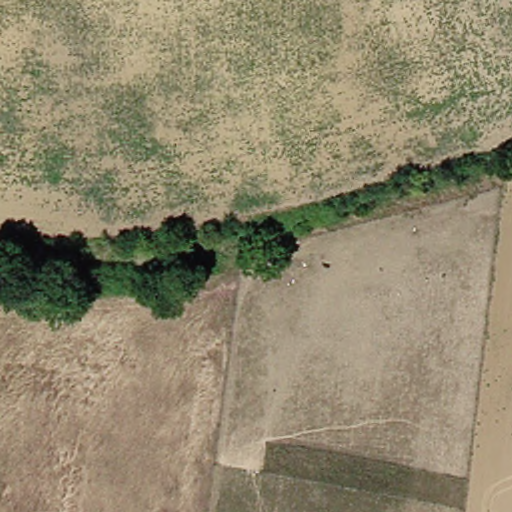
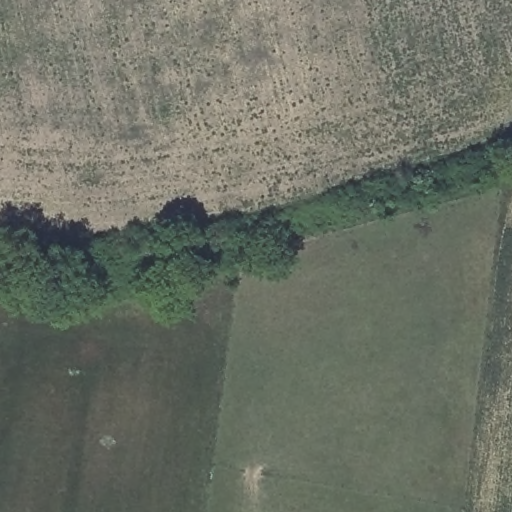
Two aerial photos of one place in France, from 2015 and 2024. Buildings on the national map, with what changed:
[]

